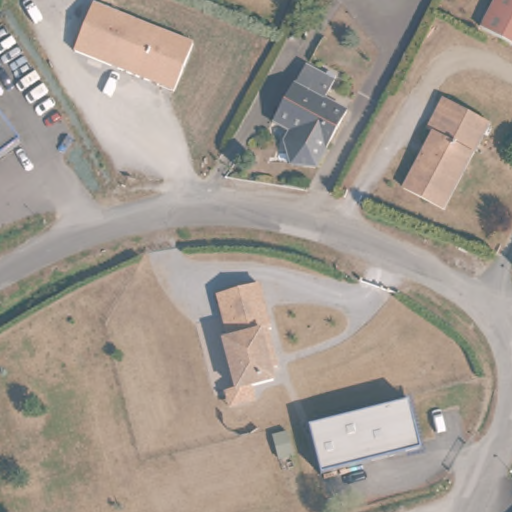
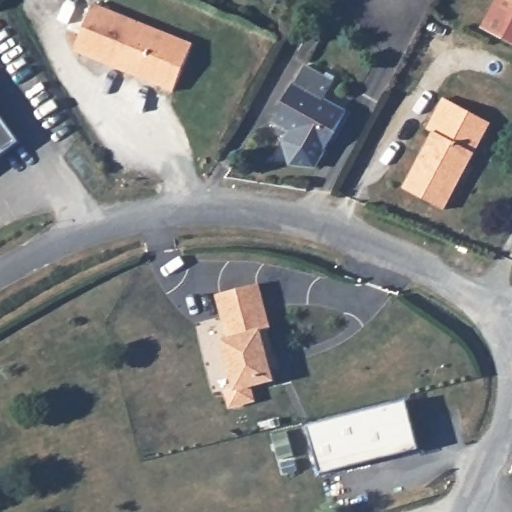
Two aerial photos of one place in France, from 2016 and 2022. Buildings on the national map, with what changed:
unchanged [(482,27),(497,0),(512,0),(512,43),(482,27)]
unchanged [(71,52),(91,6),(190,49),(169,96),(71,52)]
unchanged [(336,81),(326,99),(351,112),(319,166),(297,162),(301,154),(290,150),(288,141),(294,129),(277,120),(298,81),(301,83),(310,67),(336,81)]
unchanged [(487,123),(440,207),(402,186),(432,132),(425,127),(442,97),(487,123)]
unchanged [(0,161),(0,117),(21,146),(0,161)]
unchanged [(222,345),(229,343),(217,299),(258,289),(270,334),(267,335),(273,362),(267,364),(273,385),(250,391),(253,406),(229,412),(226,397),(235,395),(222,345)]
unchanged [(387,405),(401,401),(403,401),(415,449),(387,456),(377,458),(316,473),(303,425),(387,405)]

